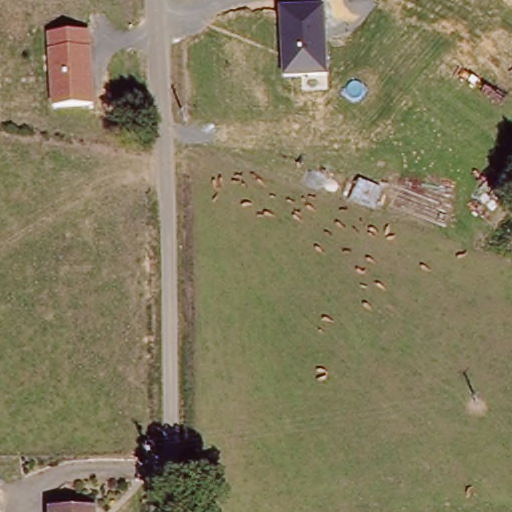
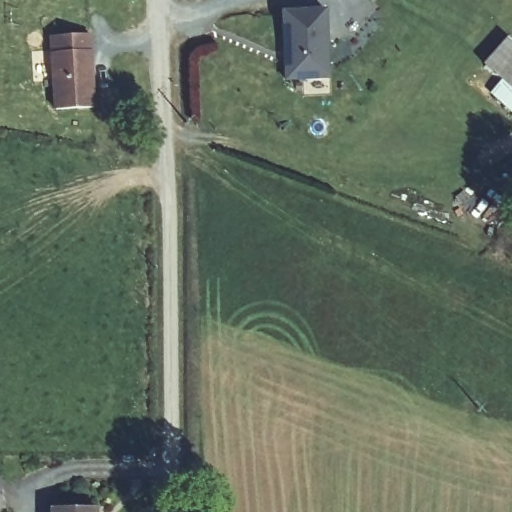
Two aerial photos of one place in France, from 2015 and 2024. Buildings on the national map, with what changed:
unchanged [(327,7),(328,78),(283,79),(281,10),(327,7)]
unchanged [(94,32),(99,109),(54,111),(50,36),(94,32)]
new [(491,62),(512,38),(512,82),(510,80),(491,62)]
unchanged [(0,507),(0,477),(2,477),(4,507),(0,507)]
unchanged [(50,504),(93,504),(93,512),(50,512),(50,504)]

